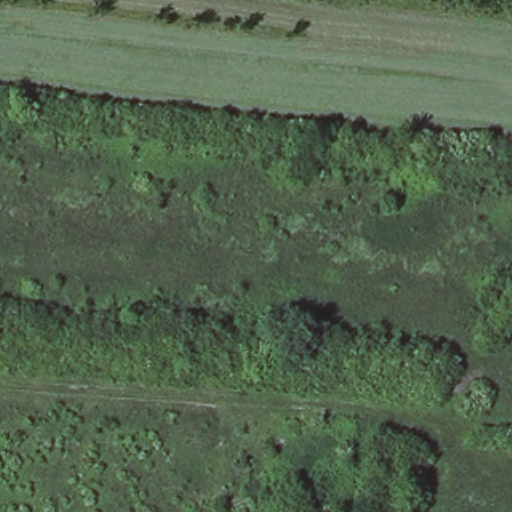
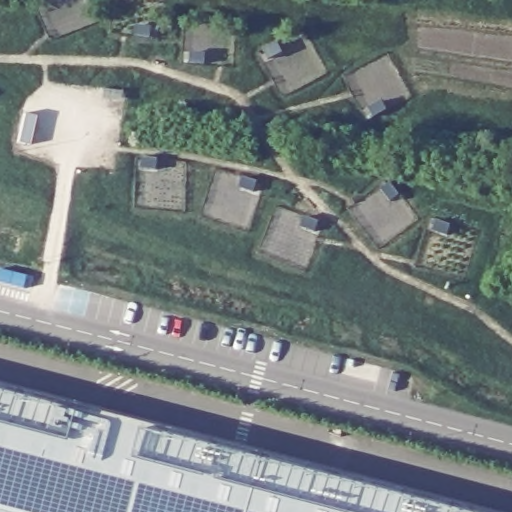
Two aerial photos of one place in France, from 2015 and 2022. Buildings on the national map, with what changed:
new [(0,512),(0,385),(483,512),(0,512)]

